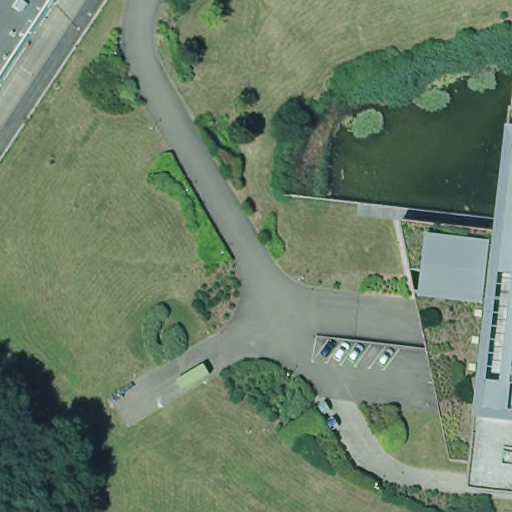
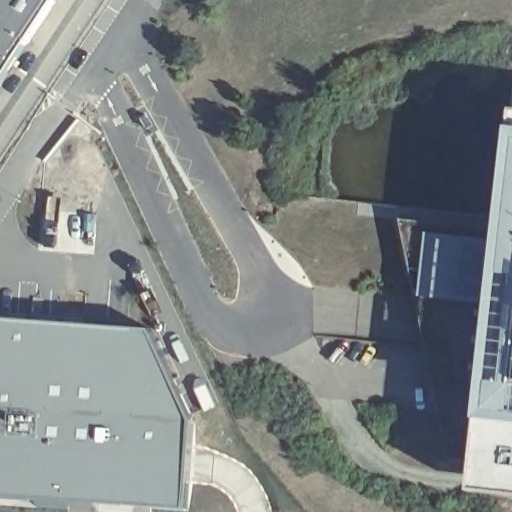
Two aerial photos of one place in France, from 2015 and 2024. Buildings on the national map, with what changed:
unchanged [(0,78),(0,0),(52,0),(0,78)]
unchanged [(476,417),(439,413),(399,220),(500,232),(512,117),(512,495),(472,490),(476,417)]
new [(0,496),(0,320),(154,331),(194,422),(186,509),(0,496)]

